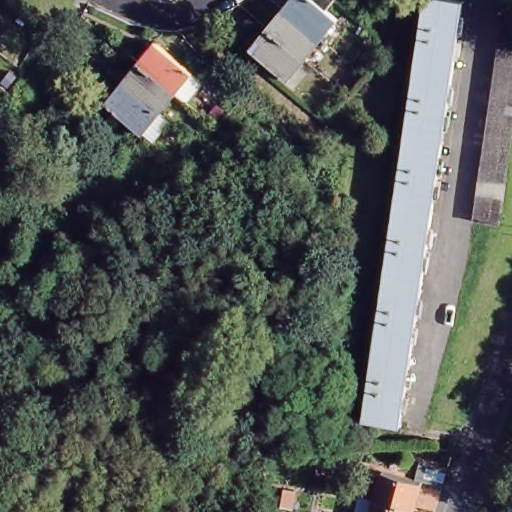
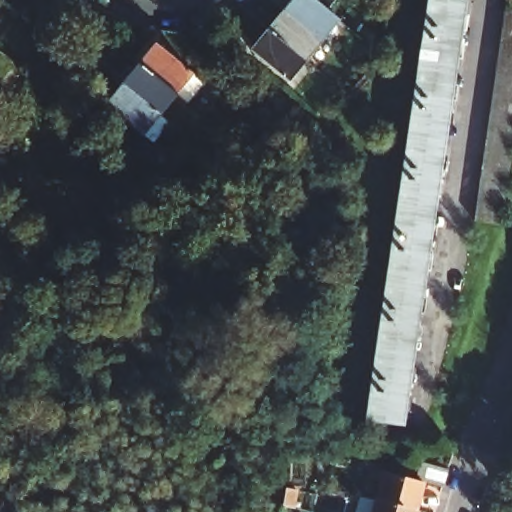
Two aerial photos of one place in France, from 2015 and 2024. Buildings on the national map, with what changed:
unchanged [(324,10),(334,19),(317,39),(281,10),(289,0),(333,0),(324,10)]
unchanged [(402,425),(367,420),(429,0),(459,0),(465,1),(402,425)]
unchanged [(499,221),(474,217),(503,6),(512,8),(512,130),(499,221)]
unchanged [(300,60),(264,30),(281,10),(317,39),(300,60)]
unchanged [(283,80),(247,51),(264,30),(300,60),(283,80)]
unchanged [(151,38),(187,68),(170,89),(134,60),(151,38)]
unchanged [(170,89),(154,109),(118,80),(134,60),(170,89)]
unchanged [(154,109),(137,129),(102,100),(118,80),(154,109)]
unchanged [(419,468),(446,475),(441,493),(422,489),(416,512),(395,512),(375,507),(382,478),(414,486),(419,468)]
unchanged [(395,512),(358,512),(361,503),(375,507),(395,512)]

